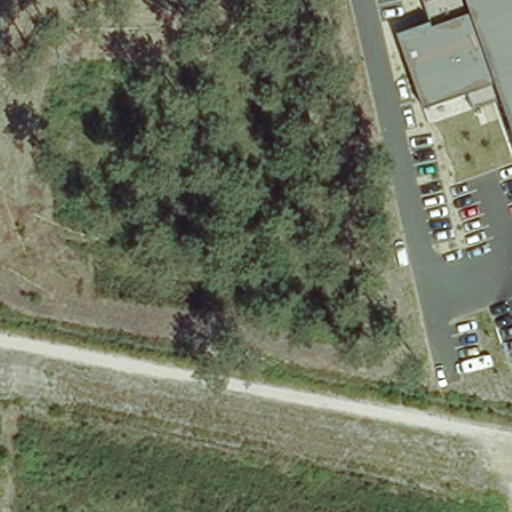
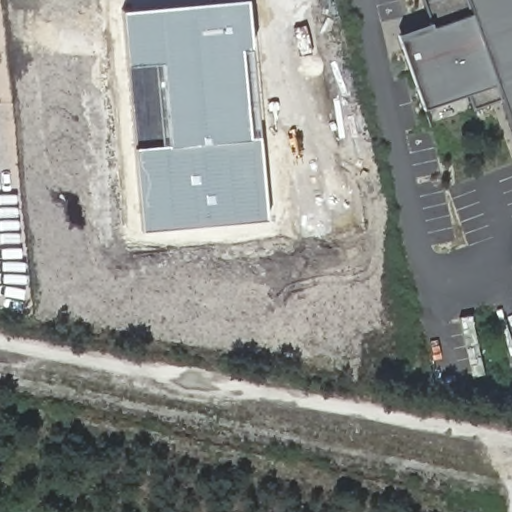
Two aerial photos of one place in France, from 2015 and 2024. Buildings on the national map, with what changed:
new [(134,147),(125,64),(119,9),(219,0),(246,0),(249,44),(258,134),(265,218),(141,230),(134,147)]
unchanged [(473,108),(468,93),(421,108),(398,30),(431,18),(426,0),(512,0),(512,133),(500,99),(473,108)]

